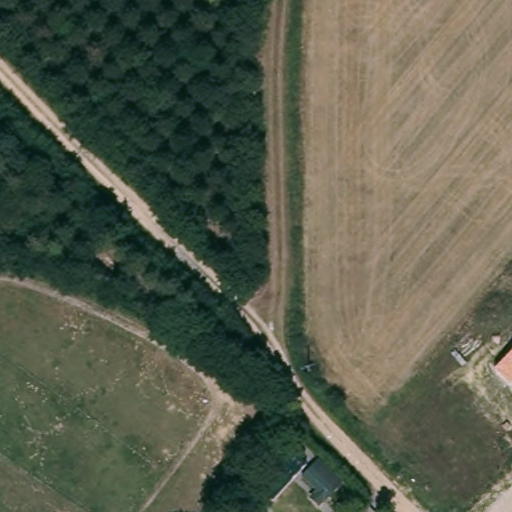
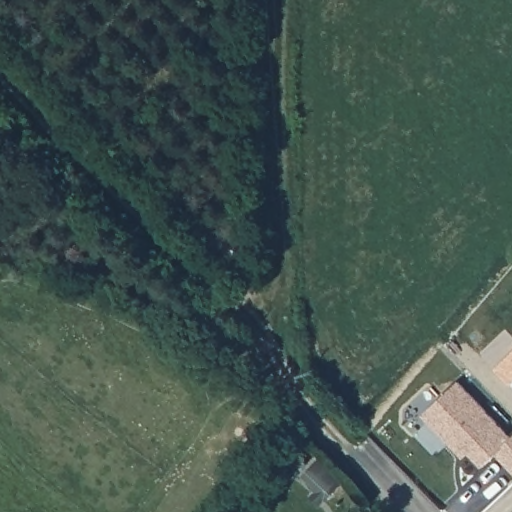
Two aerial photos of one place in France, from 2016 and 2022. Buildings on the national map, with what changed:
unchanged [(512,383),(510,384),(495,369),(512,353),(512,383)]
new [(422,409),(459,377),(512,433),(512,466),(495,449),(481,461),(468,447),(462,452),(454,443),(422,409)]
unchanged [(321,459),(343,482),(319,507),(309,497),(315,490),(302,477),(321,459)]

